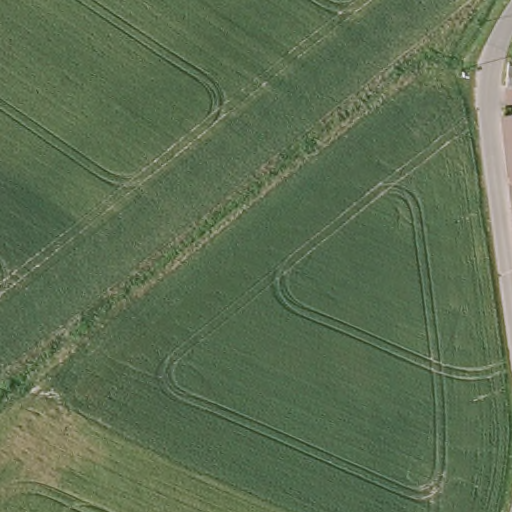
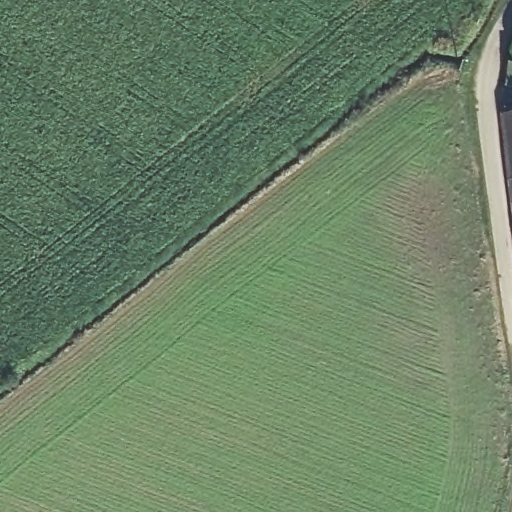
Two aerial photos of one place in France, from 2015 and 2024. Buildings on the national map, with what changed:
unchanged [(509,61),(512,61),(512,93),(506,92),(509,61)]
unchanged [(512,120),(512,197),(507,120),(512,120)]

